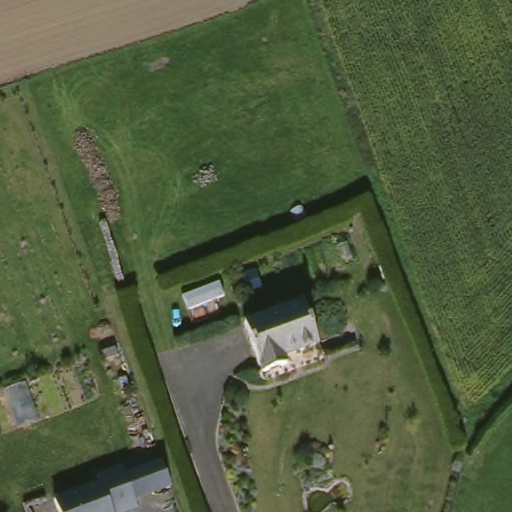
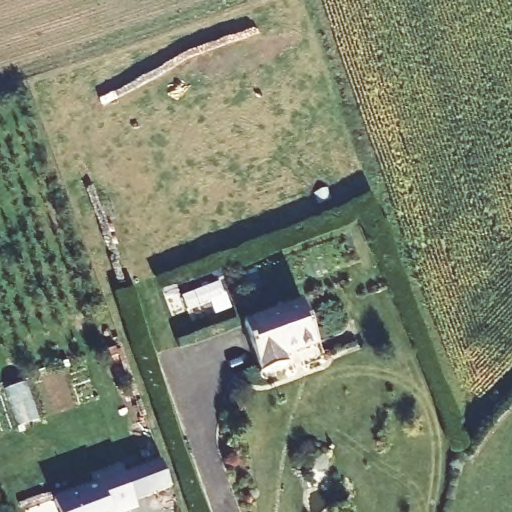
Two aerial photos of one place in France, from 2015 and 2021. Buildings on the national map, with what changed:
unchanged [(290,354),(292,362),(264,372),(245,320),(307,299),(322,344),(290,354)]
unchanged [(161,457),(172,486),(136,499),(125,471),(161,457)]
unchanged [(101,482),(99,475),(123,466),(138,507),(123,512),(60,512),(56,499),(101,482)]

